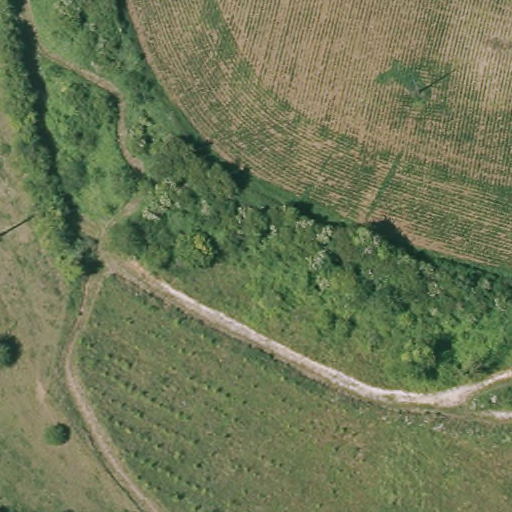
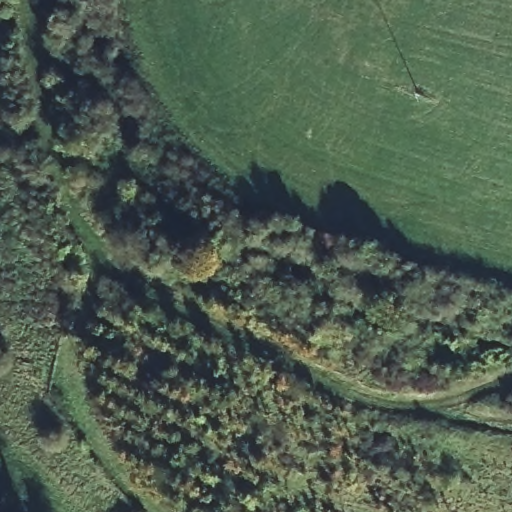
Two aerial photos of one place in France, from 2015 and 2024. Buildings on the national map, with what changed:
[]

